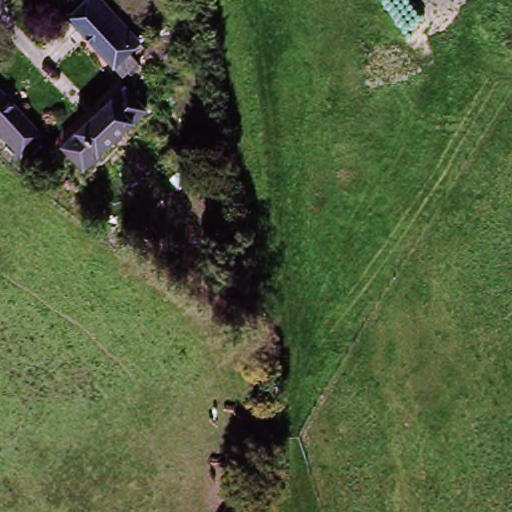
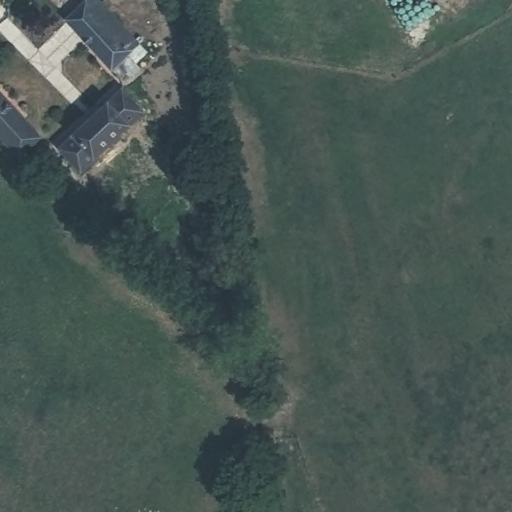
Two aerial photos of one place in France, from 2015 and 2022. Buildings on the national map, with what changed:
unchanged [(93,0),(136,41),(119,59),(125,66),(115,77),(62,28),(90,0),(93,0)]
unchanged [(115,96),(135,116),(73,177),(53,155),(115,96)]
unchanged [(15,156),(0,141),(0,108),(31,140),(15,156)]

